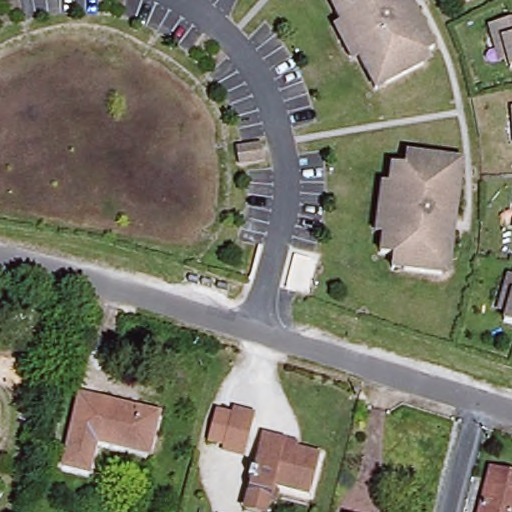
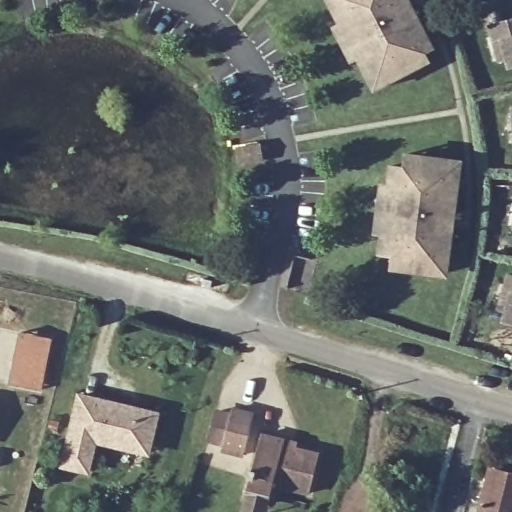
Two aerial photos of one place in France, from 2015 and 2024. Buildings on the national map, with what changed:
unchanged [(355,56),(348,60),(331,29),(338,25),(331,12),(325,0),(407,0),(415,15),(432,46),(418,54),(422,64),(383,85),(373,90),(362,69),(355,56)]
unchanged [(490,27),(512,21),(512,70),(511,70),(508,60),(501,62),(495,43),(490,27)]
unchanged [(512,107),(512,138),(511,125),(510,107),(512,107)]
unchanged [(268,156),(243,160),(242,144),(266,140),(268,156)]
unchanged [(381,257),(384,236),(375,236),(380,188),(389,189),(391,169),(405,170),(406,157),(418,157),(457,161),(456,176),(460,177),(457,210),(456,230),(453,262),(445,263),(445,277),(406,273),(393,272),(395,258),(381,257)]
unchanged [(512,330),(499,327),(502,316),(495,314),(500,295),(504,278),(512,281),(512,330)]
new [(23,332),(52,340),(40,391),(11,385),(23,332)]
unchanged [(82,392),(160,412),(150,452),(97,438),(89,469),(65,462),(82,392)]
unchanged [(256,413),(245,455),(224,450),(225,442),(210,439),(217,411),(232,415),(234,408),(256,413)]
unchanged [(251,484),(265,429),(286,435),(285,440),(321,450),(311,486),(276,477),(272,490),(270,498),(249,493),(251,484)]
unchanged [(512,471),(512,512),(479,512),(491,466),(512,471)]

